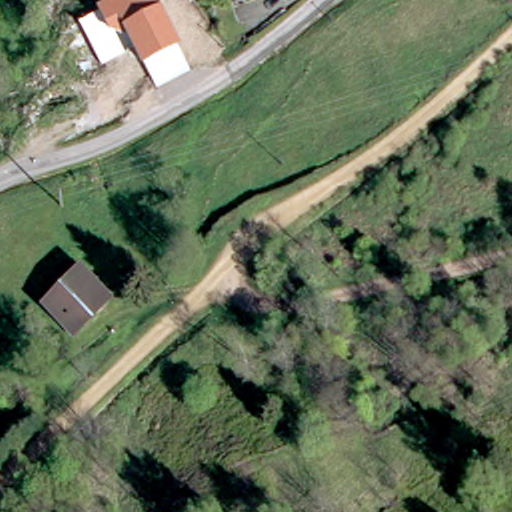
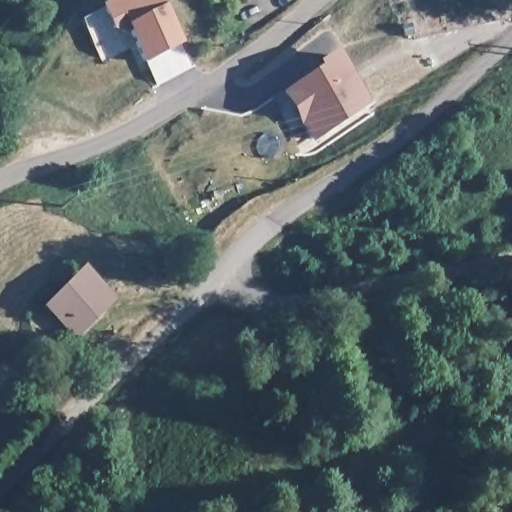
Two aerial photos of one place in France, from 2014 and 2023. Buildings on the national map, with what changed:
unchanged [(110,0),(158,0),(161,6),(180,44),(143,63),(128,35),(108,30),(97,7),(110,0)]
unchanged [(256,0),(266,0),(258,4),(256,0)]
new [(372,101),(312,143),(279,95),(316,69),(312,65),(336,49),(372,101)]
unchanged [(89,275),(113,298),(84,328),(60,303),(89,275)]

